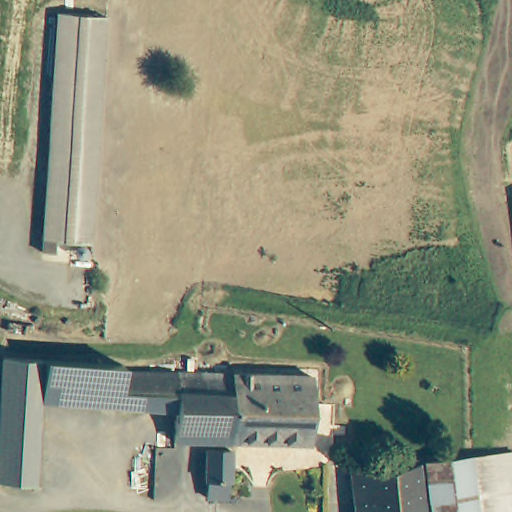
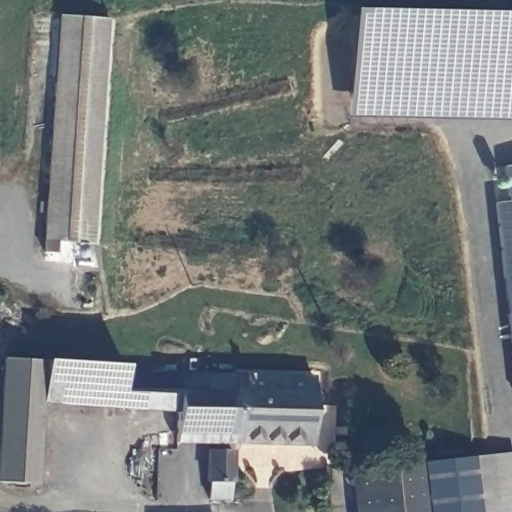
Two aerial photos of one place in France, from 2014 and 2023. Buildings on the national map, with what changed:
new [(350,10),(512,14),(512,121),(347,118),(350,10)]
unchanged [(59,240),(58,251),(44,251),(60,16),(107,18),(94,241),(59,240)]
unchanged [(38,485),(0,483),(0,424),(5,358),(47,363),(45,403),(38,485)]
unchanged [(117,406),(45,403),(47,363),(119,366),(119,371),(117,406)]
unchanged [(236,442),(238,411),(171,408),(117,406),(119,371),(222,372),(317,376),(316,445),(236,442)]
unchanged [(238,411),(236,442),(236,449),(170,446),(171,408),(238,411)]
unchanged [(232,452),(231,497),(211,497),(212,451),(232,452)]
unchanged [(512,453),(512,512),(477,512),(470,456),(497,455),(512,453)]
unchanged [(420,471),(420,462),(470,456),(477,512),(357,512),(353,478),(420,471)]

